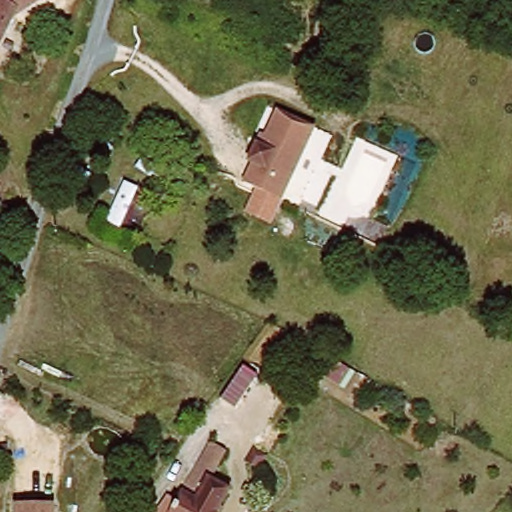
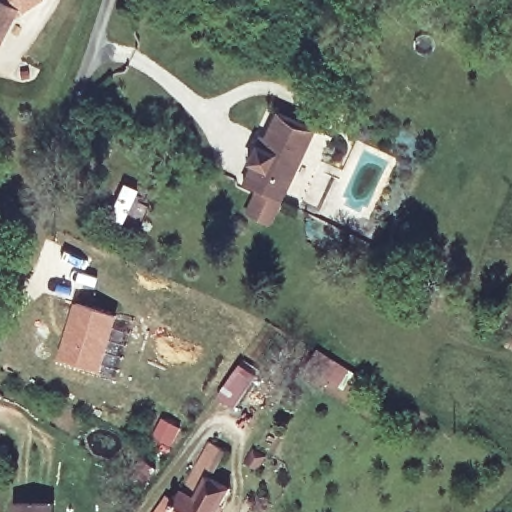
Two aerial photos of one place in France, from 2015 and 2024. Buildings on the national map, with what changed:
unchanged [(42,0),(26,13),(16,46),(0,42),(0,0),(42,0)]
unchanged [(265,149),(282,116),(319,133),(283,205),(246,185),(256,165),(252,163),(261,146),(265,149)]
unchanged [(141,187),(123,229),(107,222),(125,180),(141,187)]
new [(74,302),(118,316),(99,372),(55,358),(74,302)]
unchanged [(215,398),(233,367),(248,377),(229,408),(215,398)]
unchanged [(209,512),(142,512),(150,498),(156,491),(173,456),(183,436),(196,444),(204,448),(209,440),(228,452),(211,483),(222,488),(209,512)]
unchanged [(262,446),(273,453),(265,464),(254,457),(262,446)]
unchanged [(56,512),(19,512),(18,507),(55,505),(56,512)]

